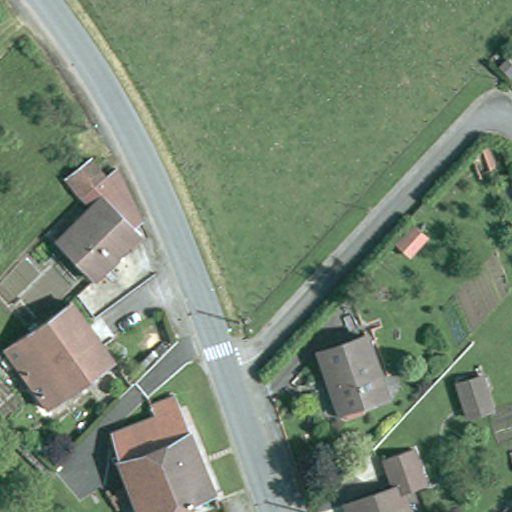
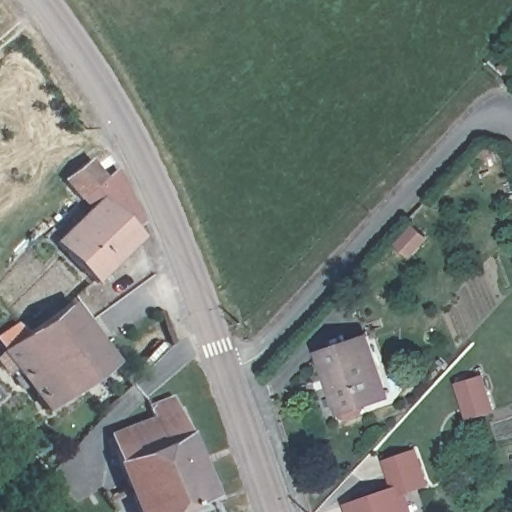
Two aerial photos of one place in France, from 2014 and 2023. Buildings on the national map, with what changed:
unchanged [(97,205),(87,195),(85,196),(70,176),(94,158),(108,176),(120,167),(145,221),(138,227),(145,234),(97,278),(61,241),(97,205)]
unchanged [(53,412),(34,386),(27,390),(20,380),(26,375),(10,352),(33,335),(74,305),(98,338),(109,330),(118,341),(106,350),(115,362),(117,365),(53,412)]
unchanged [(329,372),(322,352),(370,335),(391,395),(367,402),(342,411),(329,372)]
unchanged [(456,382),(480,375),(490,408),(467,416),(456,382)]
unchanged [(128,473),(116,432),(160,416),(155,405),(178,395),(183,407),(186,414),(220,493),(174,512),(145,512),(140,499),(121,508),(107,483),(128,473)]
unchanged [(405,485),(396,487),(388,460),(418,451),(429,485),(407,492),(405,485)]
unchanged [(396,487),(405,485),(407,492),(414,512),(353,512),(350,503),(396,487)]

